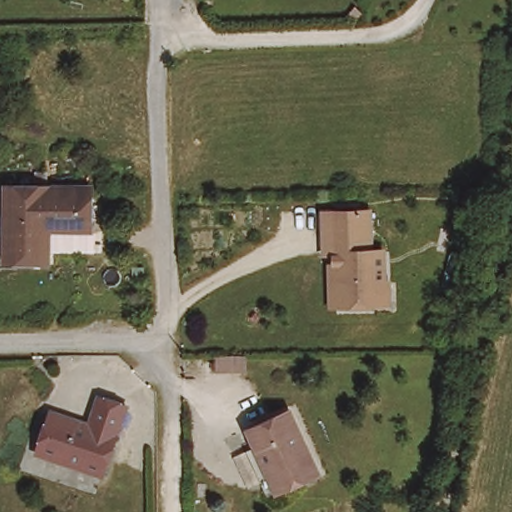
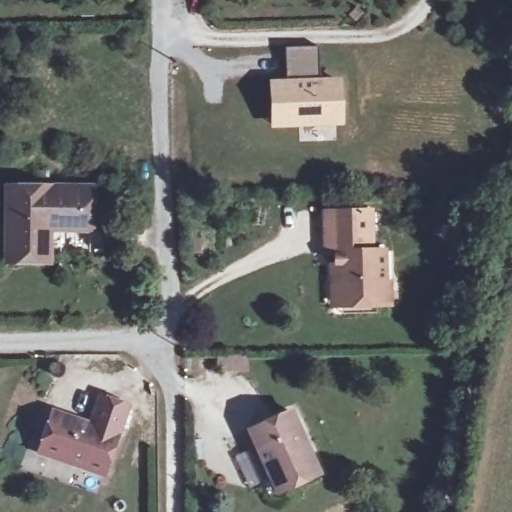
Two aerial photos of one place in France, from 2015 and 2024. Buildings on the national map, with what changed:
new [(346,125),(269,128),(268,78),(285,77),(284,47),(317,46),(319,76),(343,75),(346,125)]
unchanged [(93,230),(50,230),(50,263),(7,262),(8,186),(93,187),(93,230)]
unchanged [(378,305),(339,306),(338,254),(327,254),(326,213),(371,211),(372,251),(384,251),(385,289),(390,288),(390,305),(378,305)]
unchanged [(249,373),(217,373),(217,359),(249,358),(249,373)]
unchanged [(113,468),(110,478),(109,480),(87,472),(88,468),(45,453),(58,417),(95,430),(106,401),(134,412),(124,441),(123,441),(113,468)]
unchanged [(254,446),(262,442),(254,426),(295,406),(324,467),(283,487),(275,491),(254,446)]

